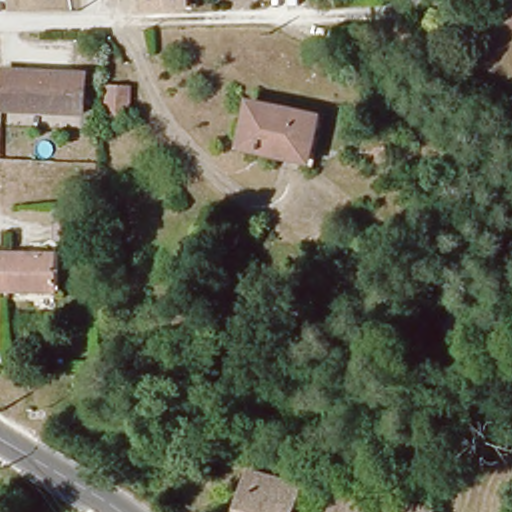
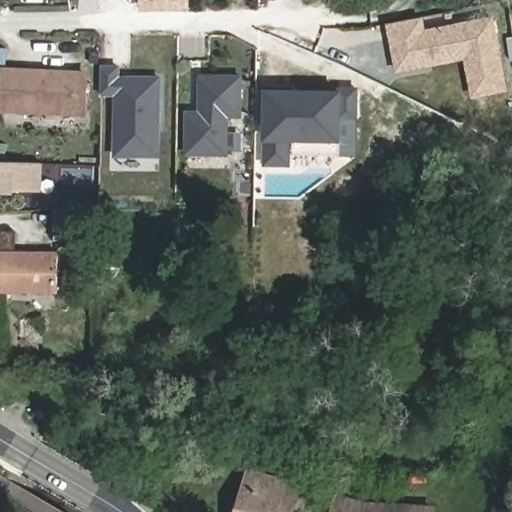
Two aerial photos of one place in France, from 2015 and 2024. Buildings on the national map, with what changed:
unchanged [(188,9),(147,9),(147,0),(188,0),(188,9)]
new [(464,60),(396,73),(386,24),(424,17),(426,30),(494,17),(509,92),(472,99),(464,60)]
new [(149,155),(118,156),(117,94),(103,94),(101,67),(119,67),(119,77),(160,77),(161,118),(162,155),(149,155)]
unchanged [(84,115),(4,112),(5,75),(85,77),(84,115)]
new [(200,114),(200,78),(240,77),(241,117),(228,117),(228,155),(188,156),(188,115),(200,114)]
new [(264,127),(264,89),(297,89),(297,94),(269,94),(269,127),(264,127)]
demolished [(130,91),(130,116),(110,117),(109,91),(130,91)]
new [(293,158),(293,168),(269,167),(269,94),(343,95),(344,92),(361,91),(360,121),(344,121),(344,143),(344,158),(293,158)]
demolished [(318,117),(309,162),(243,150),(250,105),(318,117)]
new [(40,193),(13,192),(11,202),(0,202),(0,162),(41,164),(40,193)]
unchanged [(85,241),(55,242),(54,211),(84,212),(85,241)]
unchanged [(59,293),(0,293),(0,256),(59,256),(59,293)]
unchanged [(302,485),(294,512),(231,512),(244,467),(302,485)]
unchanged [(434,500),(434,512),(414,512),(414,499),(434,500)]
unchanged [(369,511),(384,512),(331,512),(334,500),(369,511)]

